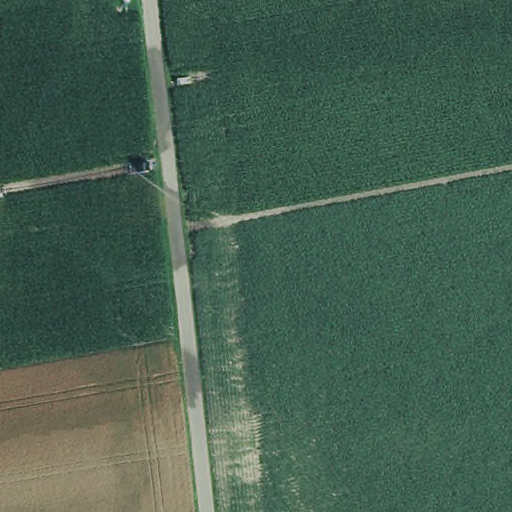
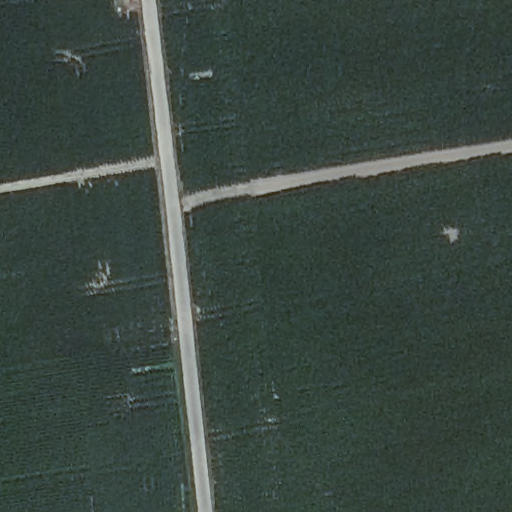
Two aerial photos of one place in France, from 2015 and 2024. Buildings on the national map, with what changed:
[]

